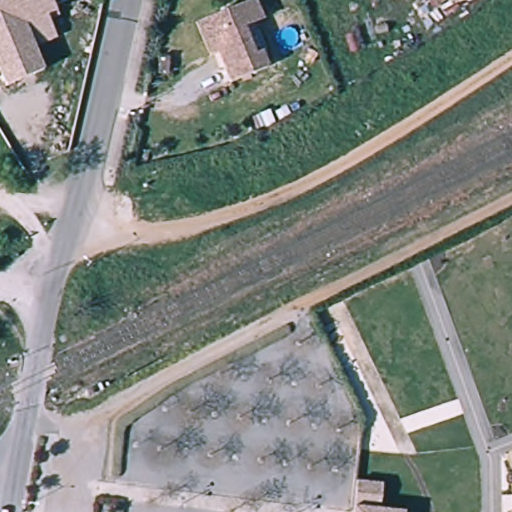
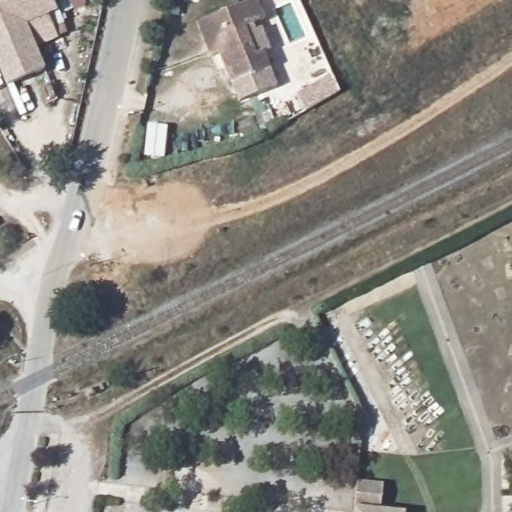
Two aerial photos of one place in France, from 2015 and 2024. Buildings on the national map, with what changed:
unchanged [(26,24),(46,69),(7,86),(0,69),(0,0),(52,0),(57,9),(26,24)]
unchanged [(268,0),(275,16),(255,24),(266,52),(273,49),(280,65),(243,80),(231,51),(221,55),(207,19),(255,0),(268,0)]
unchanged [(381,508),(401,511),(400,512),(351,512),(354,479),(384,481),(381,508)]

